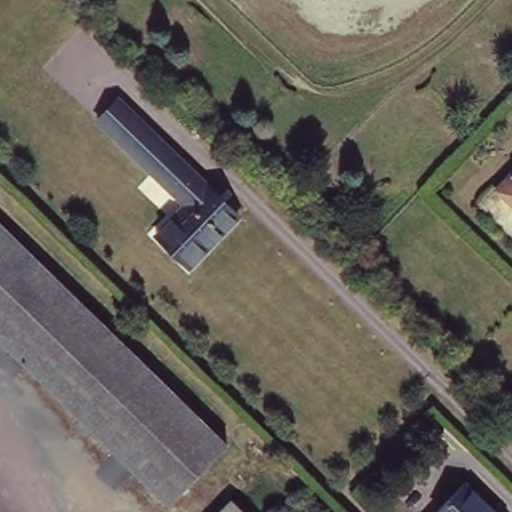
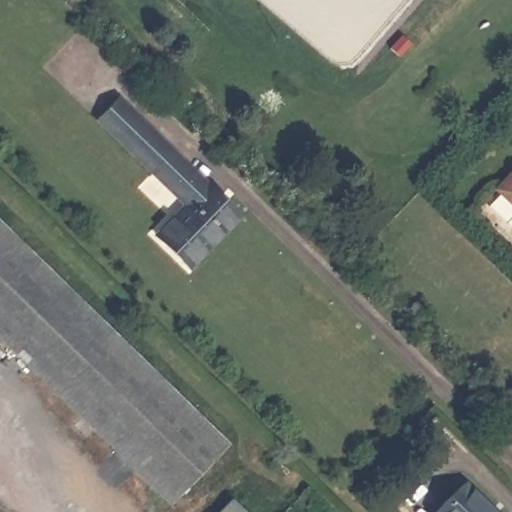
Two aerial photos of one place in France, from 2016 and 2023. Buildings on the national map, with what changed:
unchanged [(120,98),(240,217),(190,267),(156,235),(185,205),(99,119),(120,98)]
unchanged [(492,189),(512,168),(512,208),(492,189)]
unchanged [(170,503),(0,338),(0,223),(226,444),(170,503)]
unchanged [(443,512),(466,488),(491,512),(443,512)]
unchanged [(240,512),(215,512),(227,499),(240,512)]

